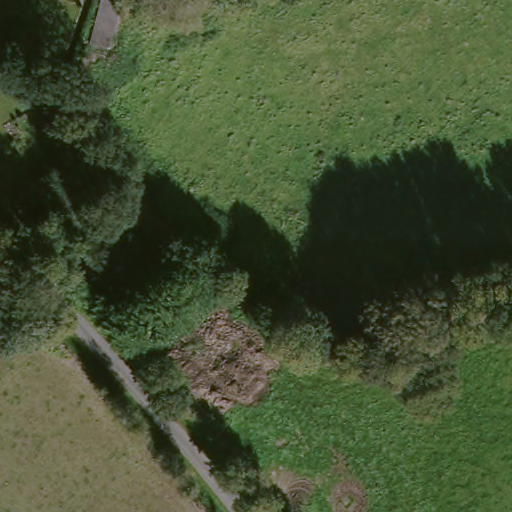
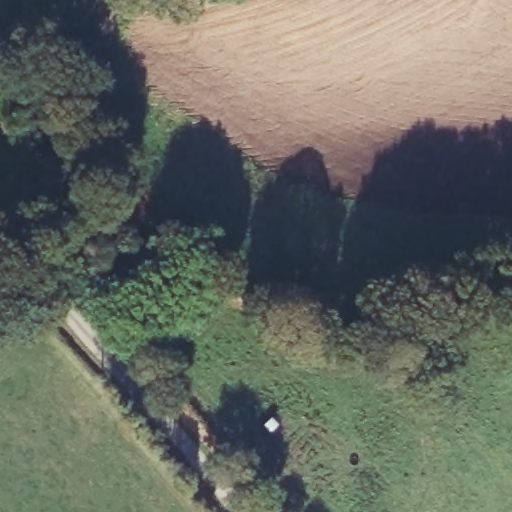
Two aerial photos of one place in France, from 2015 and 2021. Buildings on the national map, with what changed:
unchanged [(98,34),(100,27),(106,0),(136,0),(127,39),(98,34)]

